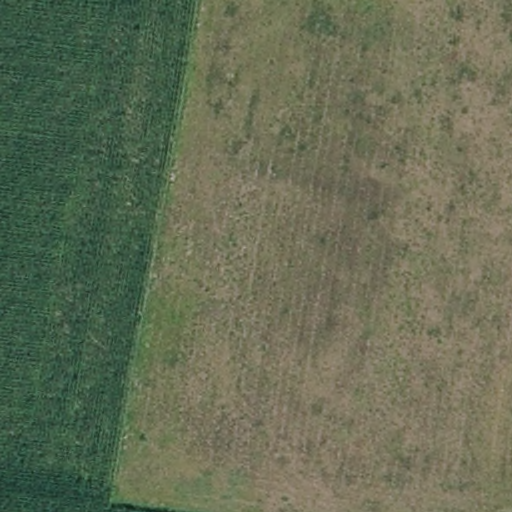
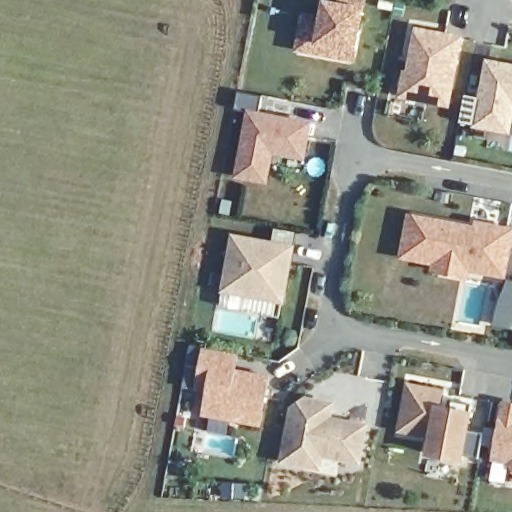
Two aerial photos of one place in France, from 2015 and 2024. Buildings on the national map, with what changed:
new [(320,58),(299,55),(305,21),(325,24),(328,7),(342,10),(344,0),(368,0),(358,54),(356,65),(320,58)]
new [(408,80),(411,65),(412,59),(417,36),(461,44),(448,111),(401,102),(406,79),(408,80)]
new [(482,104),(489,68),(512,72),(512,119),(508,137),(461,128),(466,101),(482,104)]
new [(247,107),(314,119),(307,160),(275,154),(270,184),(234,178),(247,107)]
new [(411,221),(478,233),(479,227),(512,234),(512,245),(505,280),(469,273),(468,281),(436,275),(437,267),(403,261),(411,221)]
new [(221,292),(232,232),(296,244),(285,304),(221,292)]
new [(238,370),(272,376),(263,429),(203,417),(207,393),(196,391),(203,347),(240,353),(238,370)]
new [(410,377),(442,383),(439,400),(451,402),(453,392),(473,397),(468,422),(485,425),(480,451),(463,447),(462,452),(429,446),(433,428),(401,422),(410,377)]
new [(512,452),(496,448),(506,394),(512,395),(512,452)]
new [(307,462),(286,457),(296,405),(309,396),(334,401),(331,416),(368,423),(361,458),(325,452),(322,465),(307,462)]

